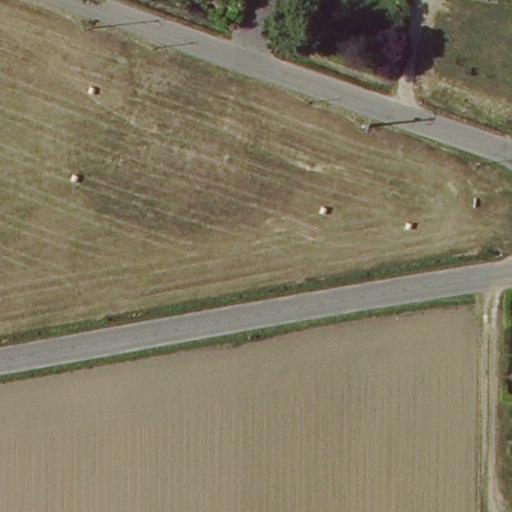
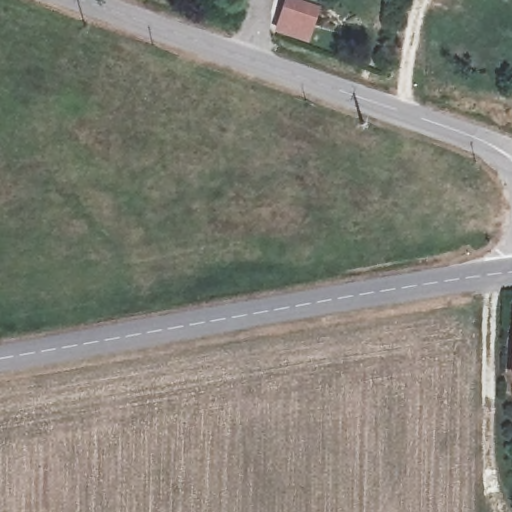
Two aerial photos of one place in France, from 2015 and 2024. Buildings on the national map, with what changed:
new [(316,8),(308,39),(279,32),(287,0),(316,8)]

